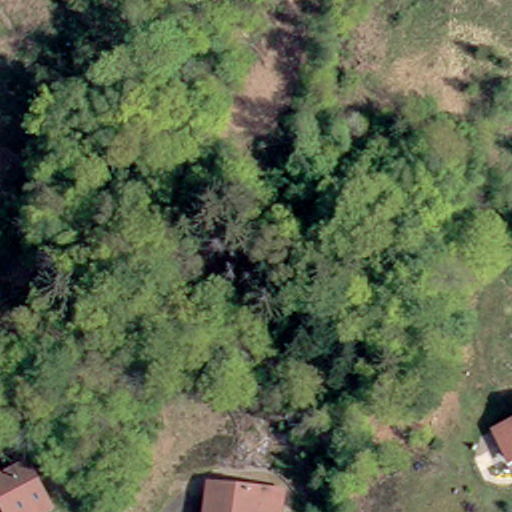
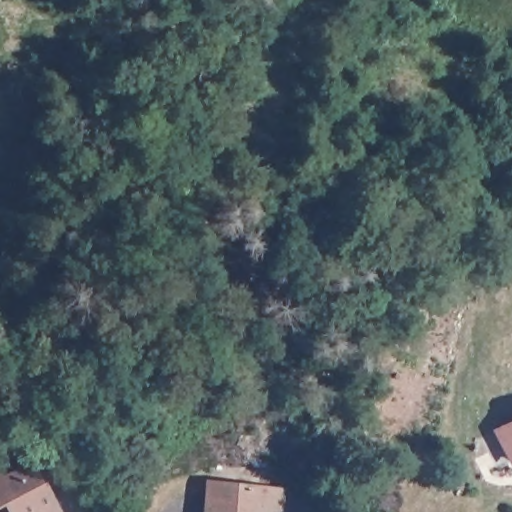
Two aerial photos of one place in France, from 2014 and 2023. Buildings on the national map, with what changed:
unchanged [(512,426),(512,462),(496,434),(512,426)]
unchanged [(2,480),(28,465),(52,509),(45,512),(0,512),(0,477),(2,480)]
unchanged [(283,499),(282,512),(211,512),(214,491),(283,499)]

